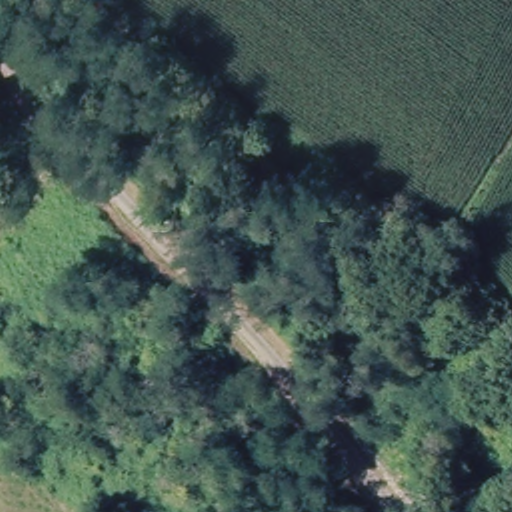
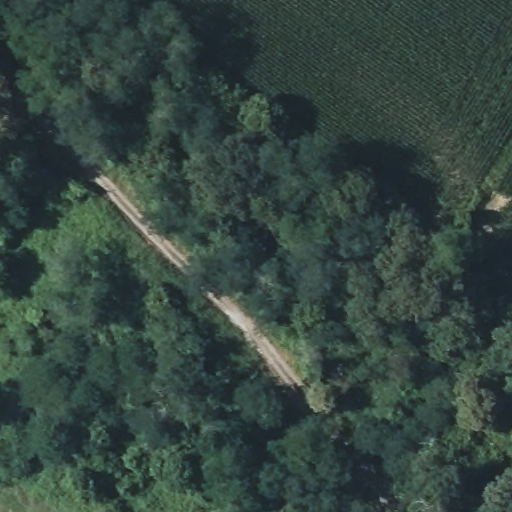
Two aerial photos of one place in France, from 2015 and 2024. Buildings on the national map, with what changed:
[]

